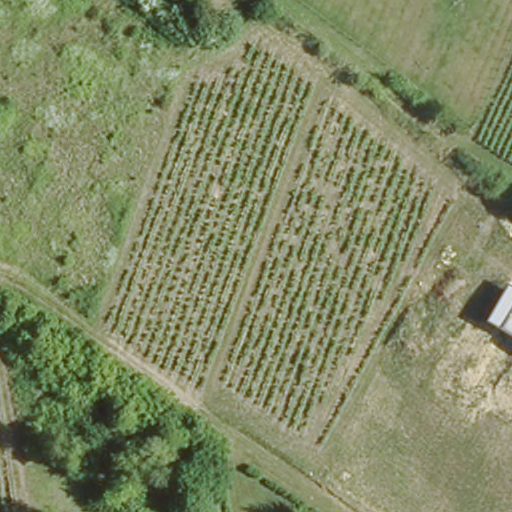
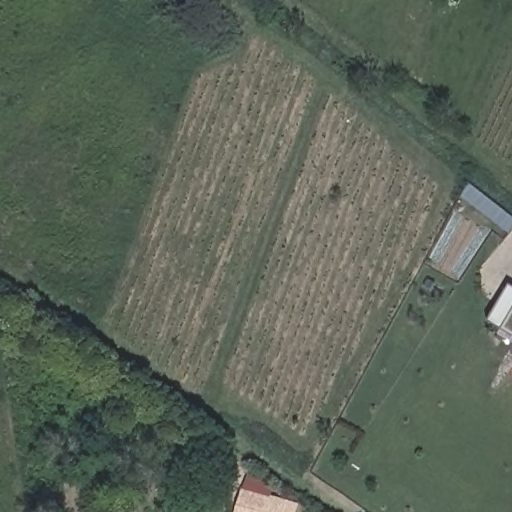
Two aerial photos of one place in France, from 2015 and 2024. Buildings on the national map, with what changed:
unchanged [(243,10),(232,0),(249,0),(243,10)]
unchanged [(510,284),(512,285),(512,336),(488,322),(510,284)]
new [(268,496),(299,506),(296,512),(233,512),(245,474),(272,484),(268,496)]

